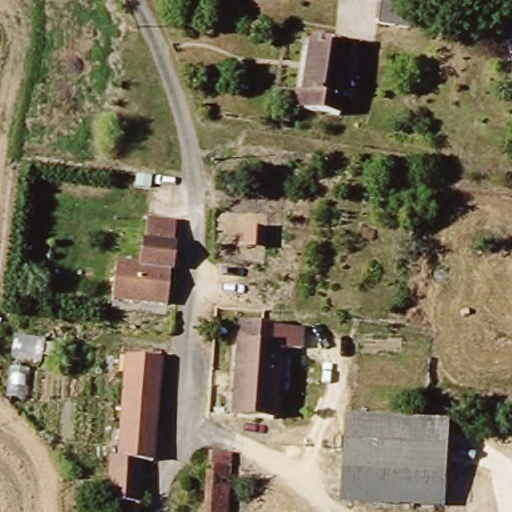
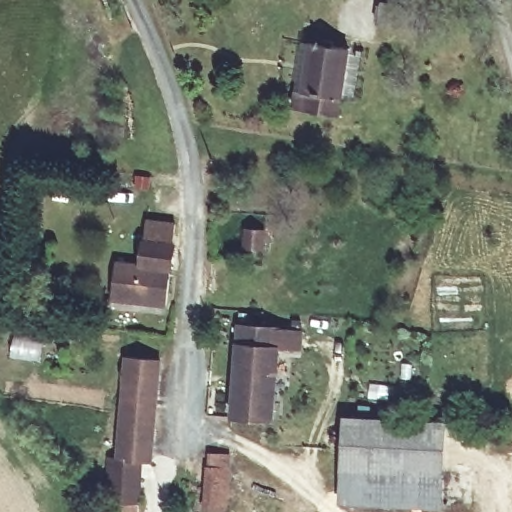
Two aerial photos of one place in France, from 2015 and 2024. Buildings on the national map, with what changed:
unchanged [(384,0),(421,0),(415,33),(379,27),(384,0)]
unchanged [(293,109),(298,92),(293,91),(303,36),(324,40),(323,44),(338,47),(358,50),(347,97),(328,94),(320,117),(293,109)]
unchanged [(140,261),(143,221),(145,215),(172,218),(170,224),(163,298),(107,293),(110,258),(140,261)]
unchanged [(259,247),(240,246),(242,227),(261,229),(259,247)]
unchanged [(271,417),(252,416),(252,425),(232,426),(231,412),(239,325),(297,328),(302,328),(302,351),(295,351),(275,350),(271,417)]
unchanged [(150,356),(160,357),(152,455),(142,455),(115,452),(125,343),(151,345),(150,356)]
unchanged [(443,499),(338,500),(340,417),(442,421),(443,499)]
unchanged [(225,453),(220,512),(201,512),(206,451),(225,453)]
unchanged [(138,512),(105,512),(107,452),(115,452),(142,455),(138,512)]

